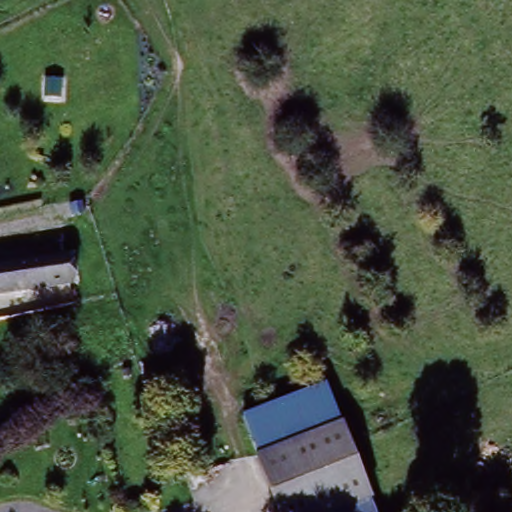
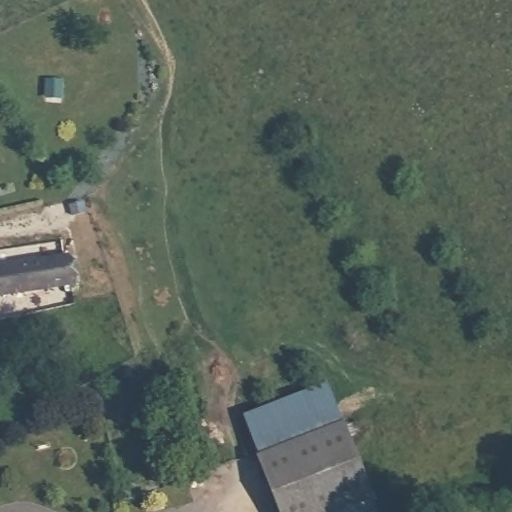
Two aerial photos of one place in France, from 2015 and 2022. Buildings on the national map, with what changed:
unchanged [(65,257),(70,284),(0,295),(0,267),(65,257)]
unchanged [(326,387),(371,512),(277,512),(241,415),(326,387)]

